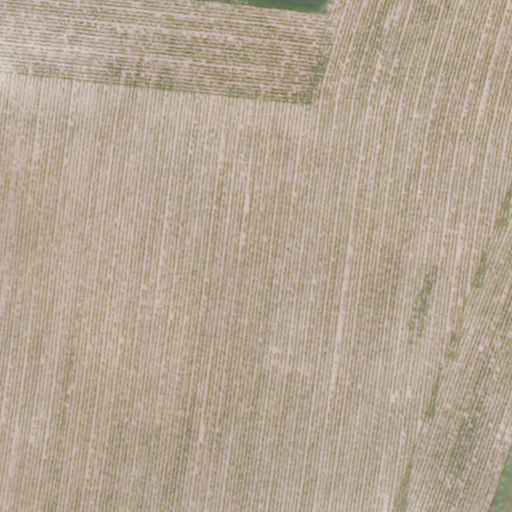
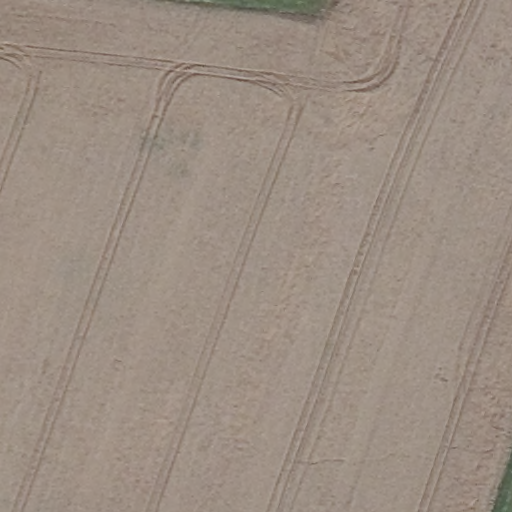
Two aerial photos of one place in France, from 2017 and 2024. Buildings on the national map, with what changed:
[]

